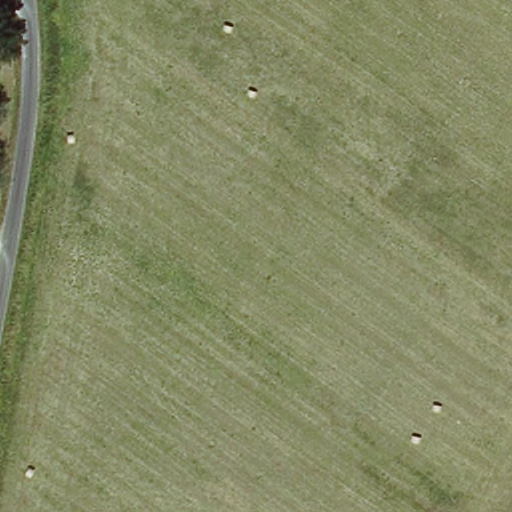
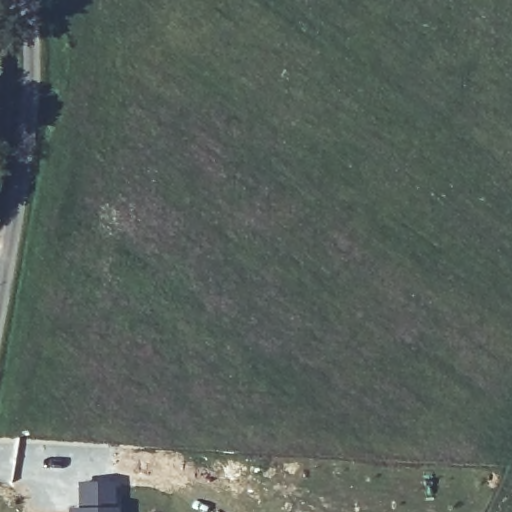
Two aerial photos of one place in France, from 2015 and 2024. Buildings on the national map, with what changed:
new [(77,508),(77,482),(116,482),(117,507),(119,507),(120,512),(67,512),(67,507),(77,508)]

